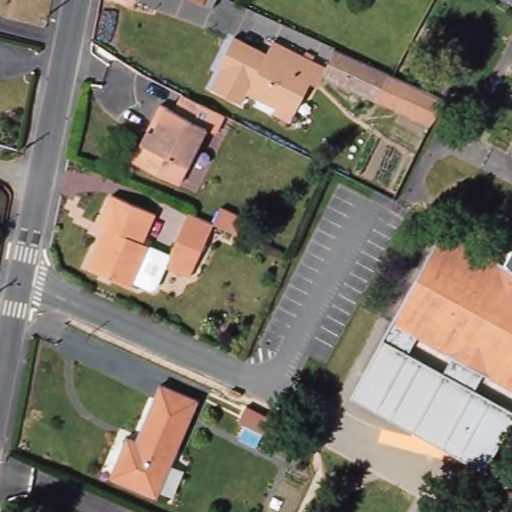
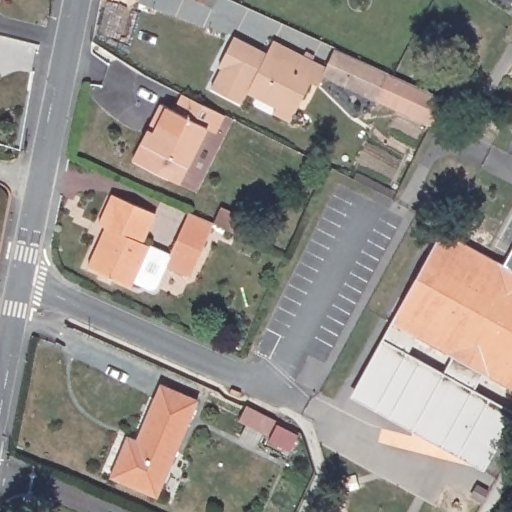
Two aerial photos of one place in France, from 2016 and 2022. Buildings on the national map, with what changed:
unchanged [(214,8),(198,0),(217,0),(214,8)]
unchanged [(512,0),(510,4),(505,0),(512,0)]
unchanged [(295,122),(277,114),(280,107),(252,93),(257,83),(225,66),(240,36),(273,53),(279,41),(317,60),(308,77),(316,81),(295,122)]
unchanged [(335,44),(340,46),(389,70),(376,96),(322,71),(335,44)]
unchanged [(389,70),(392,71),(393,71),(446,96),(429,121),(376,96),(389,70)]
unchanged [(168,173),(132,155),(161,99),(174,105),(182,89),(190,93),(224,110),(215,127),(206,123),(187,161),(179,178),(168,173)]
unchanged [(99,225),(112,194),(155,214),(143,243),(170,255),(189,212),(213,223),(189,277),(144,257),(132,286),(88,267),(106,228),(99,225)]
unchanged [(246,218),(239,234),(233,232),(213,223),(220,207),(246,218)]
unchanged [(512,274),(512,392),(438,351),(393,326),(443,236),(512,274)]
unchanged [(512,274),(499,267),(512,246),(512,274)]
unchanged [(443,374),(452,359),(482,376),(474,390),(512,409),(512,420),(485,473),(351,397),(393,326),(415,338),(407,352),(443,374)]
unchanged [(125,446),(134,449),(162,384),(199,400),(158,496),(112,477),(125,446)]

